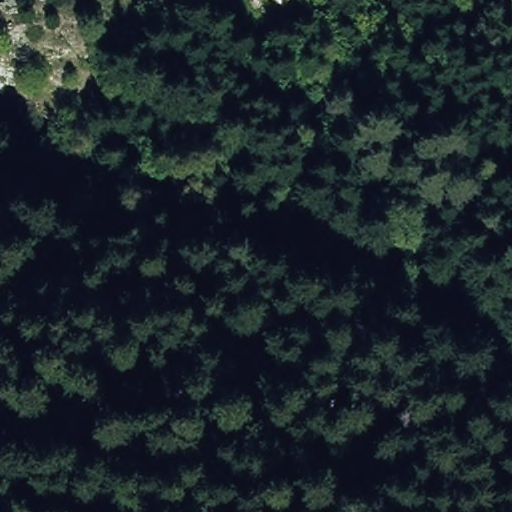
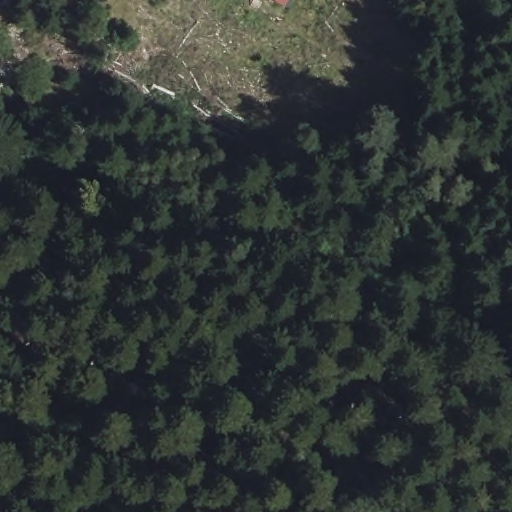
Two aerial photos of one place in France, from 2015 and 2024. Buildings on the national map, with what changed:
unchanged [(257,0),(290,0),(281,14),(257,0)]

